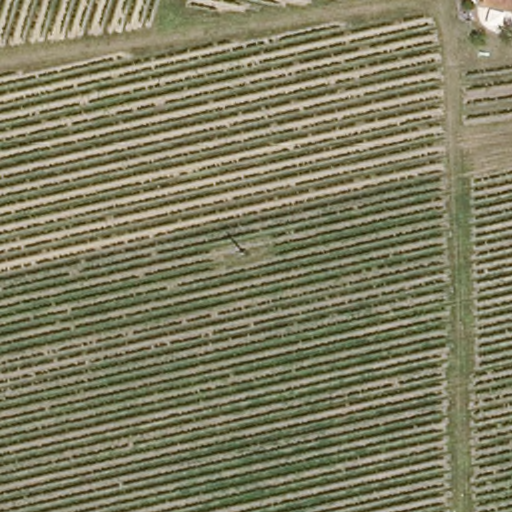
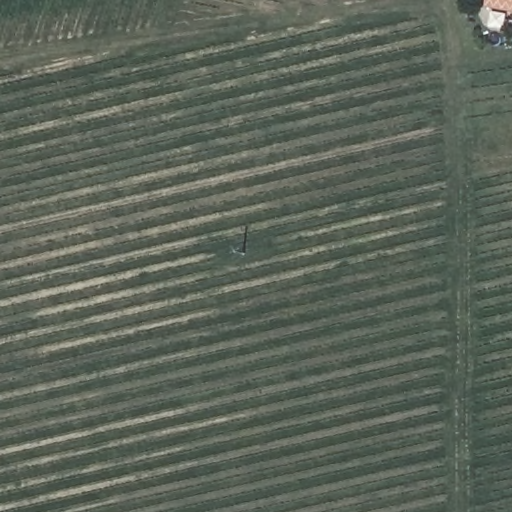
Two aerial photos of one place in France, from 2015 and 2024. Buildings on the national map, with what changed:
unchanged [(494,0),(512,0),(512,5),(494,5),(494,0)]

